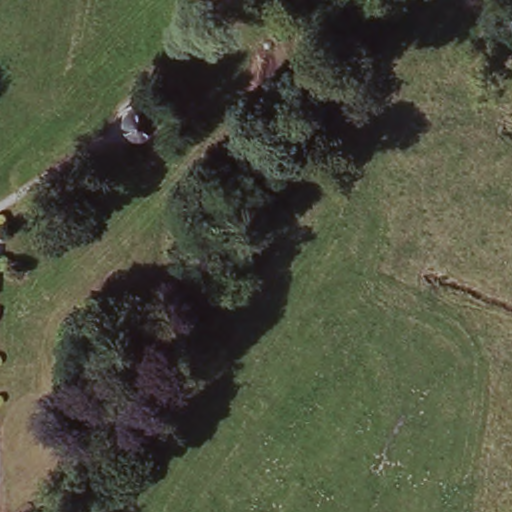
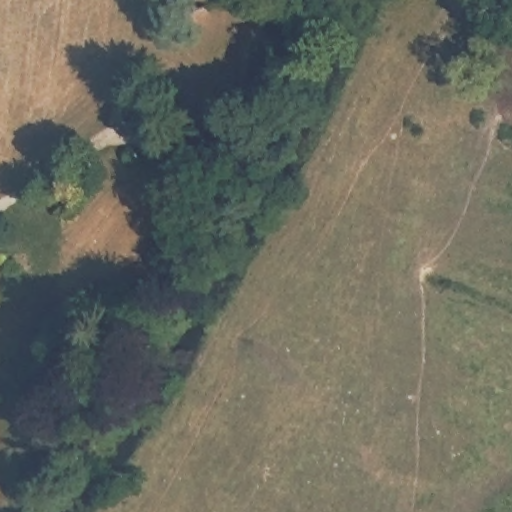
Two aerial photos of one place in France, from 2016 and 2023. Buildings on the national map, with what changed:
unchanged [(144,108),(150,113),(151,126),(148,132),(140,135),(130,134),(123,131),(121,114),(124,110),(131,107),(144,108)]

